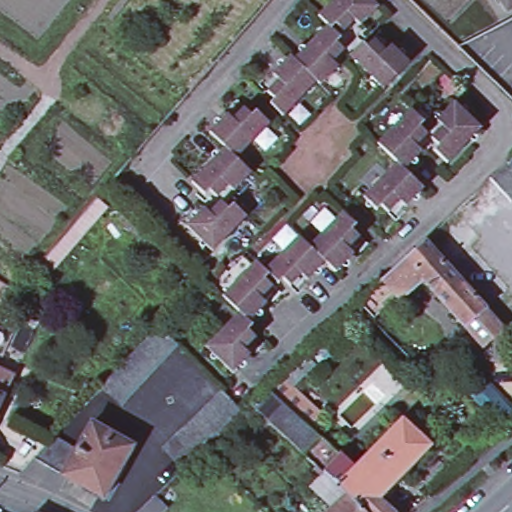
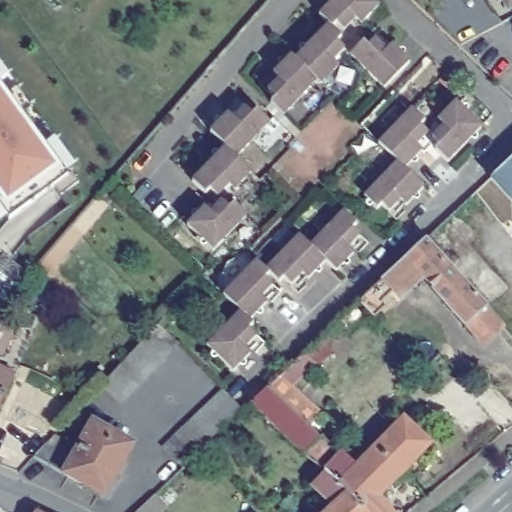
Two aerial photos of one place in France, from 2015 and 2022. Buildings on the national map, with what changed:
unchanged [(339,21),(334,26),(331,22),(321,13),(333,0),(376,0),(379,3),(363,21),(357,16),(346,28),(339,21)]
unchanged [(512,0),(505,5),(502,0),(512,0)]
unchanged [(344,35),(339,39),(346,46),(334,58),(340,64),(321,82),(319,79),(296,58),(331,22),(334,26),(344,35)]
unchanged [(351,51),(363,39),(368,43),(376,36),(387,47),(393,42),(411,59),(384,85),(351,51)]
unchanged [(284,114),(271,101),(276,96),(269,89),(281,77),(275,72),(293,54),(296,58),(319,79),(284,114)]
new [(9,77),(0,83),(0,65),(9,77)]
new [(9,99),(18,91),(31,107),(21,114),(44,147),(54,139),(75,167),(70,170),(78,182),(61,193),(57,185),(10,219),(9,217),(0,223),(0,87),(9,99)]
unchanged [(436,146),(441,141),(434,134),(445,122),(439,117),(457,99),(483,124),(449,159),(436,146)]
unchanged [(418,143),(424,149),(407,167),(399,160),(380,141),(413,107),(427,119),(422,124),(429,131),(418,143)]
unchanged [(233,121),(243,110),(251,117),(255,112),(268,125),(236,158),(225,148),(210,134),(227,116),(233,121)]
unchanged [(251,173),(233,191),(228,186),(216,198),(208,191),(204,195),(191,183),(225,148),(236,158),(251,173)]
unchanged [(426,185),(408,203),(403,198),(391,210),(384,203),(379,207),(366,194),(399,160),(407,167),(426,185)]
unchanged [(491,181),(512,161),(512,203),(491,181)]
unchanged [(424,279),(400,298),(396,293),(381,306),(371,316),(359,304),(370,294),(384,280),(407,260),(426,242),(491,181),(512,203),(474,241),(512,283),(512,289),(488,311),(506,331),(487,347),(483,346),(468,329),(424,279)]
unchanged [(204,209),(209,214),(221,202),(228,209),(233,205),(246,217),(213,252),(186,227),(204,209)]
unchanged [(346,210),(359,223),(354,228),(361,235),(350,247),(356,252),(339,270),(328,259),(312,245),(346,210)]
unchanged [(309,278),(304,273),(293,284),(286,277),(281,282),(270,271),(268,269),(301,235),(312,245),(328,259),(309,278)]
unchanged [(265,276),(273,283),(261,295),(267,300),(249,318),(242,311),(224,295),(259,260),(268,269),(270,271),(265,276)]
unchanged [(334,342),(327,335),(354,309),(361,316),(334,342)]
unchanged [(256,324),(251,329),(258,335),(246,347),(252,353),(234,371),(208,346),(242,311),(249,318),(256,324)]
unchanged [(178,346),(121,408),(104,390),(159,329),(178,346)]
unchanged [(15,373),(5,394),(0,405),(0,366),(15,373)]
unchanged [(323,469),(304,452),(252,403),(251,402),(269,385),(319,434),(321,432),(341,450),(323,469)]
unchanged [(243,408),(183,465),(164,446),(224,388),(243,408)]
unchanged [(313,485),(326,472),(344,453),(356,465),(405,415),(434,442),(381,495),(399,512),(328,512),(334,506),(313,485)]
unchanged [(133,443),(104,495),(65,472),(35,455),(54,435),(79,447),(94,421),(133,443)]
unchanged [(156,499),(168,512),(142,512),(156,499)]

